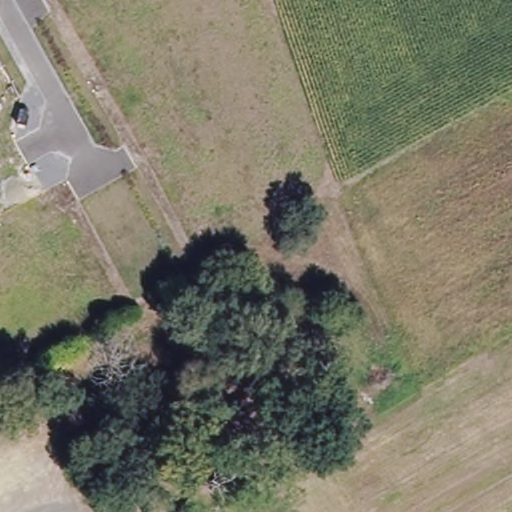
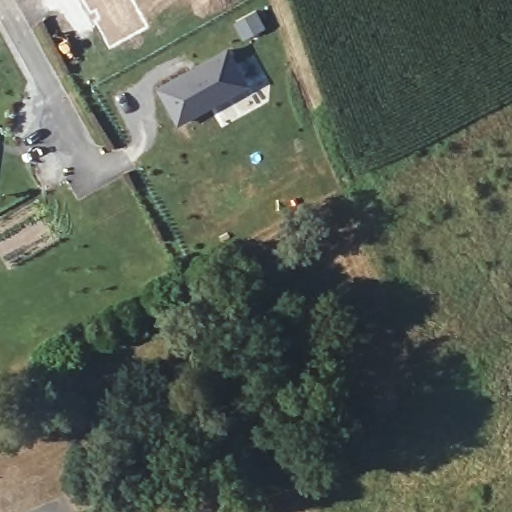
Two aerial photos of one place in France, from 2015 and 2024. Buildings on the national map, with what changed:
new [(178,126),(157,87),(229,47),(251,85),(178,126)]

